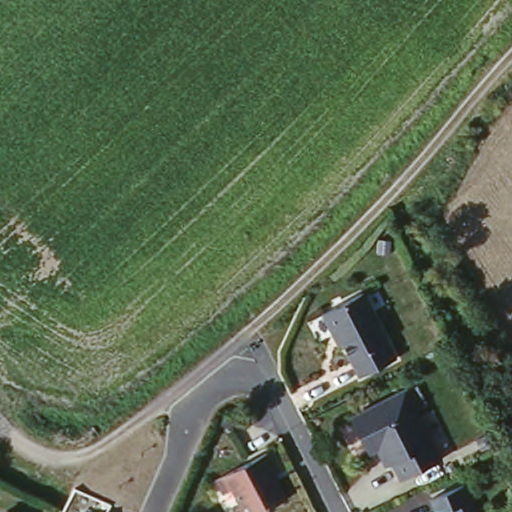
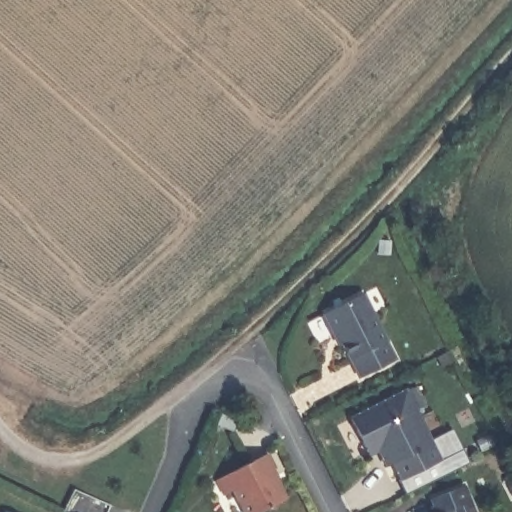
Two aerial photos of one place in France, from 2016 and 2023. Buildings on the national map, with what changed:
unchanged [(335,328),(332,330),(321,309),(361,290),(393,357),(357,375),(335,328)]
unchanged [(361,442),(346,415),(406,386),(415,403),(411,406),(436,455),(398,475),(390,457),(383,460),(374,445),(365,449),(361,442)]
unchanged [(277,463),(273,465),(288,493),(252,512),(249,512),(235,484),(226,489),(219,474),(269,449),(277,463)]
unchanged [(430,494),(462,481),(473,512),(431,512),(436,510),(430,494)]

